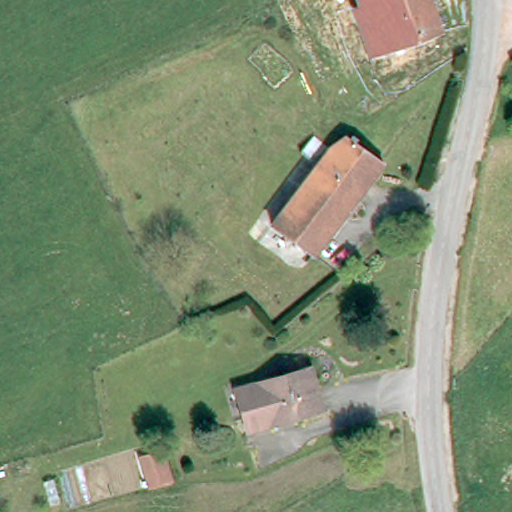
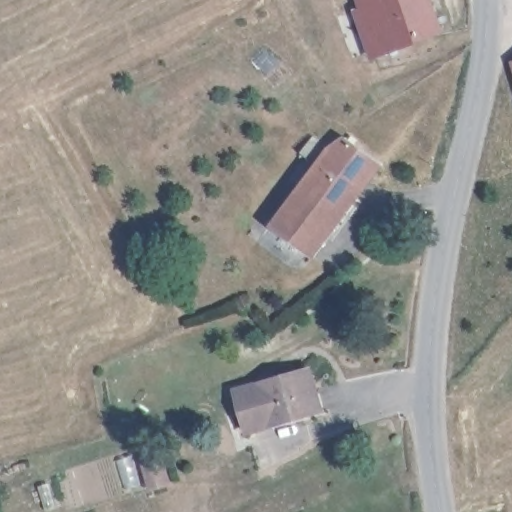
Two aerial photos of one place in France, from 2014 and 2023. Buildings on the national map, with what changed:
unchanged [(446,35),(376,60),(376,57),(371,59),(368,53),(373,51),(360,13),(366,10),(362,0),(433,0),(446,35)]
unchanged [(342,135),(379,162),(310,256),(267,224),(324,147),(342,135)]
unchanged [(250,431),(237,390),(311,369),(322,408),(250,431)]
unchanged [(134,465),(152,460),(157,459),(164,485),(159,486),(141,491),(134,465)]

